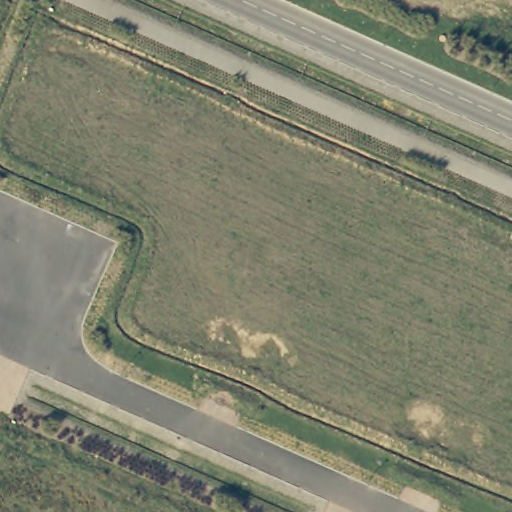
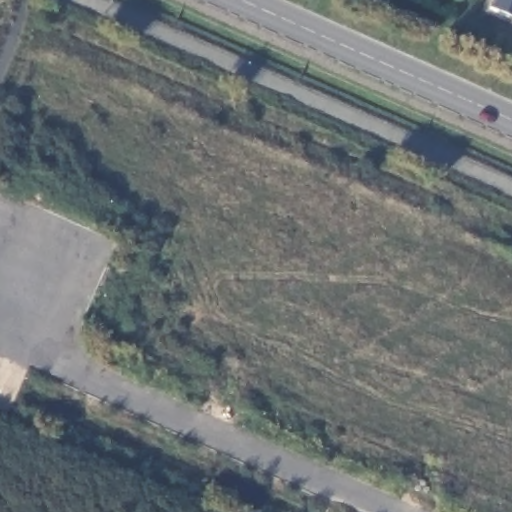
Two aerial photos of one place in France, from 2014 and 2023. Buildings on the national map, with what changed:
new [(512,19),(489,8),(493,0),(512,0),(512,19)]

